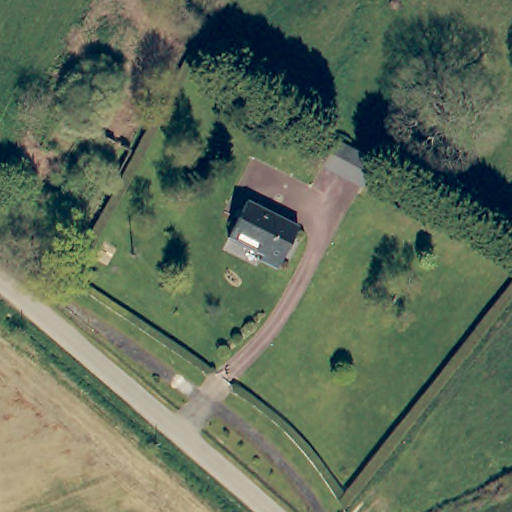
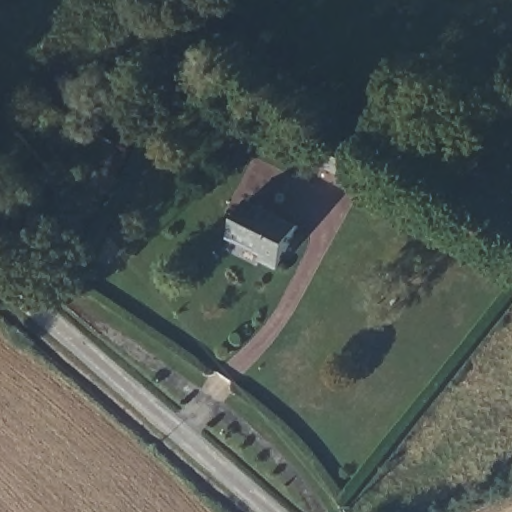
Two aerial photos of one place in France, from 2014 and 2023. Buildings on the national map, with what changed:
unchanged [(360,187),(326,168),(340,142),(377,162),(371,173),(364,188),(360,187)]
unchanged [(278,269),(261,261),(264,253),(230,236),(249,198),(300,224),(278,269)]

